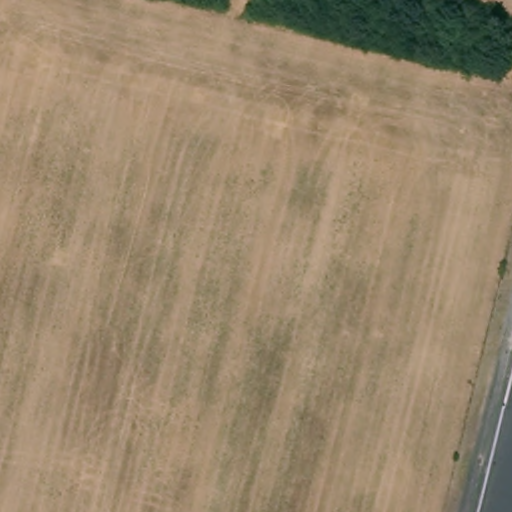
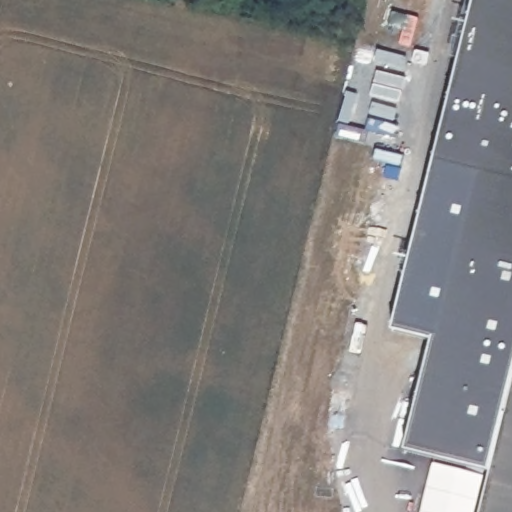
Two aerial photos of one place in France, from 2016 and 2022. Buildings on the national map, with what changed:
new [(407,451),(474,175),(433,165),(474,0),(512,0),(512,402),(495,473),(407,451)]
unchanged [(512,402),(512,512),(485,512),(512,402)]

